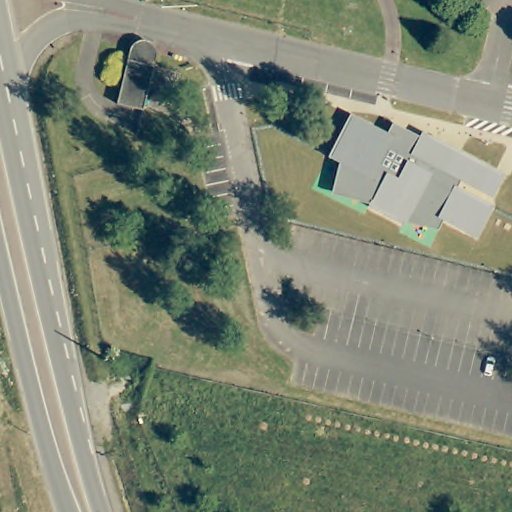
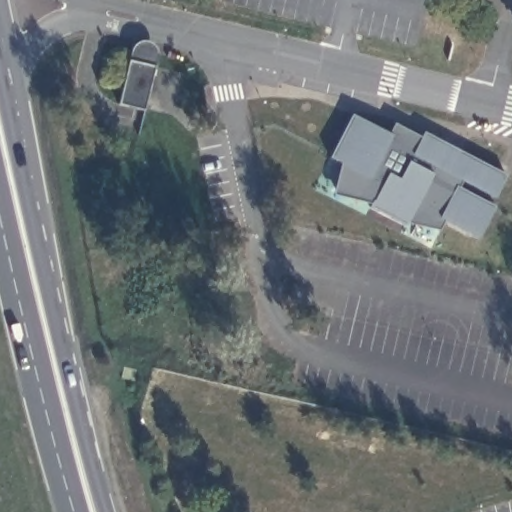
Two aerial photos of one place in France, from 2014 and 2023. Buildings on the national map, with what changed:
unchanged [(146,109),(117,101),(127,57),(134,59),(137,43),(153,47),(149,62),(156,64),(146,109)]
unchanged [(341,163),(330,158),(351,114),(388,134),(393,123),(422,138),(425,132),(506,175),(494,198),(462,182),(459,186),(457,188),(495,207),(477,239),(445,221),(438,233),(407,224),(405,228),(370,208),(371,205),(333,195),(341,163)]

